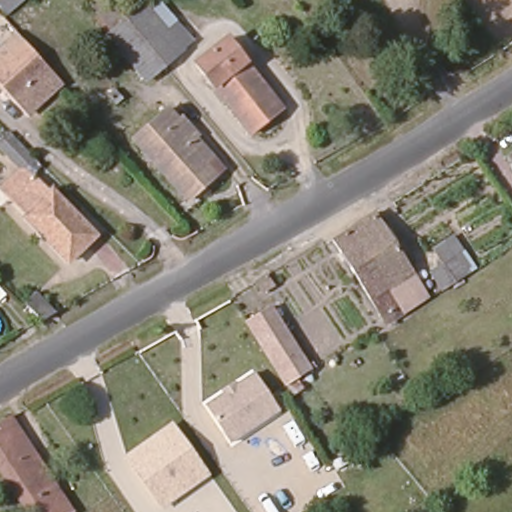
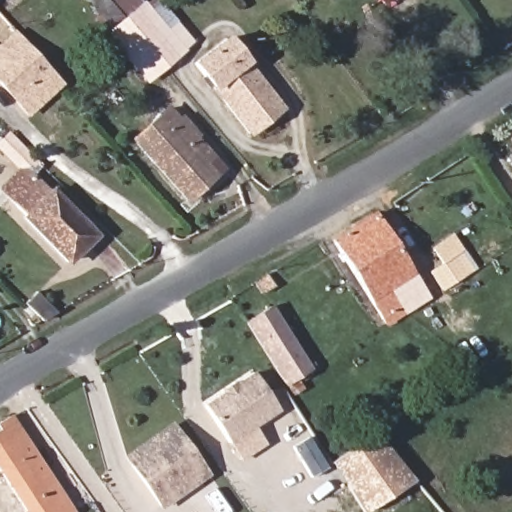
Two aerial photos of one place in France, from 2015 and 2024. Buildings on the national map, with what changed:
unchanged [(0,7),(0,0),(24,0),(7,14),(0,7)]
unchanged [(160,0),(195,41),(147,83),(107,33),(146,0),(160,0)]
unchanged [(0,85),(0,43),(12,28),(65,85),(30,117),(0,85)]
unchanged [(247,67),(242,75),(252,87),(261,84),(273,102),(242,124),(208,81),(209,75),(199,66),(227,44),(247,67)]
unchanged [(215,173),(186,195),(133,134),(165,106),(172,116),(179,114),(194,131),(222,167),(215,173)]
unchanged [(36,175),(22,173),(0,149),(0,148),(17,132),(47,162),(36,175)]
unchanged [(508,164),(512,162),(512,171),(508,164)]
unchanged [(97,233),(70,261),(29,219),(31,216),(11,199),(36,175),(97,233)]
unchanged [(352,227),(372,213),(412,272),(423,289),(428,296),(407,310),(402,302),(391,285),(352,227)]
unchanged [(402,302),(407,310),(385,325),(379,315),(368,299),(332,240),(352,227),(391,285),(402,302)]
unchanged [(476,270),(466,276),(443,291),(439,284),(431,273),(443,265),(434,250),(454,237),(463,251),(472,264),(476,270)]
unchanged [(281,301),(266,308),(260,297),(272,290),(281,301)]
unchanged [(42,321),(25,304),(38,293),(59,312),(42,321)]
unchanged [(244,323),(270,310),(306,366),(312,364),(315,371),(286,388),(285,389),(244,323)]
unchanged [(264,395),(277,413),(227,447),(215,428),(202,410),(252,377),(264,395)]
unchanged [(0,432),(2,430),(0,425),(13,418),(66,497),(74,492),(82,507),(75,512),(30,512),(0,467),(0,432)]
unchanged [(161,505),(137,470),(134,464),(127,456),(173,425),(178,433),(182,439),(207,474),(161,505)]
new [(365,512),(362,512),(331,463),(376,434),(413,479),(365,512)]

